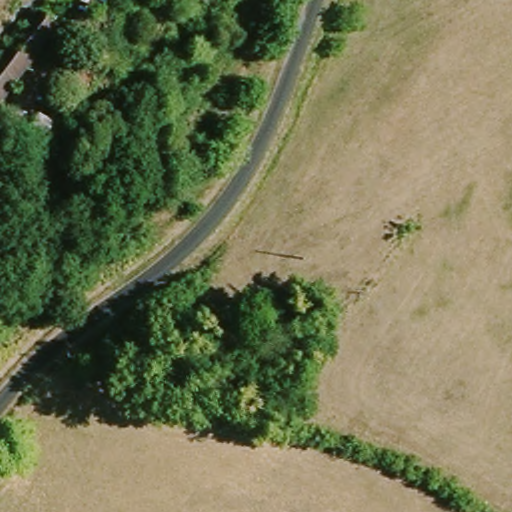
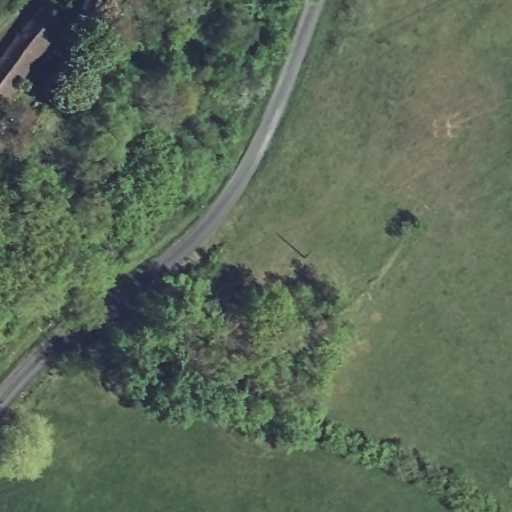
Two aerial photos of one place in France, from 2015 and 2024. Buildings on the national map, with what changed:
unchanged [(60,31),(0,113),(0,69),(41,15),(60,31)]
unchanged [(0,135),(0,131),(2,132),(0,135)]

